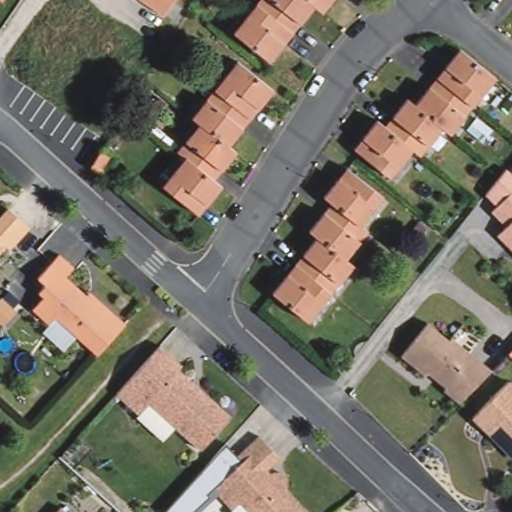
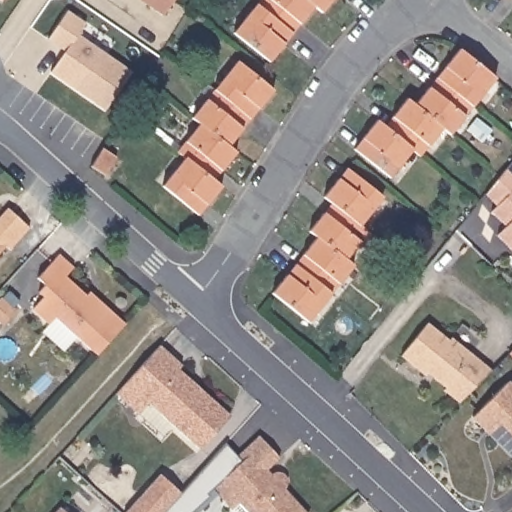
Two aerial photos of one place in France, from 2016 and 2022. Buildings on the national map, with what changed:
unchanged [(4,0),(3,1),(1,0),(4,0)]
unchanged [(174,0),(162,16),(139,0),(174,0)]
unchanged [(306,0),(312,5),(312,6),(291,32),(255,4),(258,0),(306,0)]
unchanged [(312,6),(312,5),(306,0),(330,0),(320,13),(312,6)]
unchanged [(502,0),(504,0),(503,1),(502,0)]
unchanged [(291,32),(267,61),(231,33),(255,4),(291,32)]
new [(67,11),(86,24),(78,35),(132,73),(105,110),(51,73),(65,52),(48,40),(67,11)]
unchanged [(460,53),(488,74),(497,81),(475,108),(439,79),(460,53)]
unchanged [(239,60),(275,89),(251,118),(216,90),(239,60)]
unchanged [(416,106),(417,104),(439,79),(475,108),(452,136),(443,129),(416,106)]
unchanged [(251,118),(229,144),(228,145),(201,124),(192,118),(216,90),(251,118)]
unchanged [(410,99),(417,104),(416,106),(443,129),(421,156),(413,151),(415,149),(386,128),(410,99)]
unchanged [(386,128),(415,149),(413,151),(392,177),(355,149),(379,121),(386,128)]
unchanged [(228,145),(229,144),(237,151),(215,179),(187,158),(179,151),(201,124),(228,145)]
unchanged [(103,145),(117,154),(106,173),(92,164),(96,156),(103,145)]
unchanged [(215,179),(222,185),(200,214),(164,187),(187,158),(215,179)]
unchanged [(325,198),(348,168),(382,196),(361,224),(360,225),(332,204),(325,198)]
unchanged [(503,219),(491,205),(512,185),(512,251),(492,229),(503,219)]
unchanged [(2,204),(22,224),(0,248),(0,206),(2,204)]
unchanged [(360,225),(361,224),(369,230),(346,259),(318,237),(317,238),(310,232),(332,204),(360,225)]
unchanged [(317,238),(318,237),(346,259),(353,265),(332,294),(297,264),(317,238)]
unchanged [(119,322),(92,350),(52,314),(44,322),(29,306),(40,294),(34,289),(41,280),(37,274),(57,252),(70,265),(62,272),(81,290),(83,287),(119,322)]
unchanged [(297,264),(332,294),(310,323),(273,293),(297,264)]
unchanged [(490,371),(460,407),(398,357),(426,322),(490,371)]
unchanged [(225,412),(194,444),(147,397),(135,411),(113,392),(153,342),(225,412)]
unchanged [(512,353),(512,358),(510,356),(512,353)]
unchanged [(512,459),(483,432),(480,435),(467,423),(503,386),(512,393),(512,459)]
unchanged [(227,504),(209,484),(235,459),(232,452),(256,433),(272,454),(262,467),(266,472),(272,470),(279,475),(280,483),(280,485),(302,512),(247,512),(234,498),(227,504)]
unchanged [(55,504),(63,512),(47,512),(55,504)]

